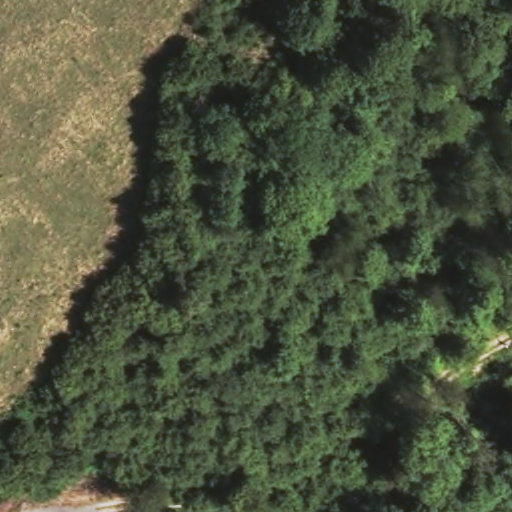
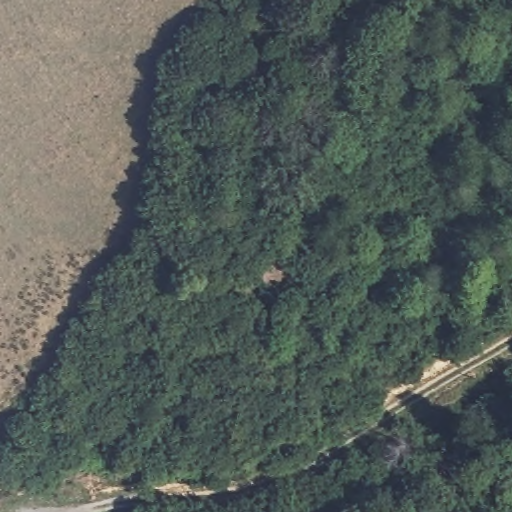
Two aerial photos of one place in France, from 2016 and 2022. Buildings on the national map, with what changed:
[]

